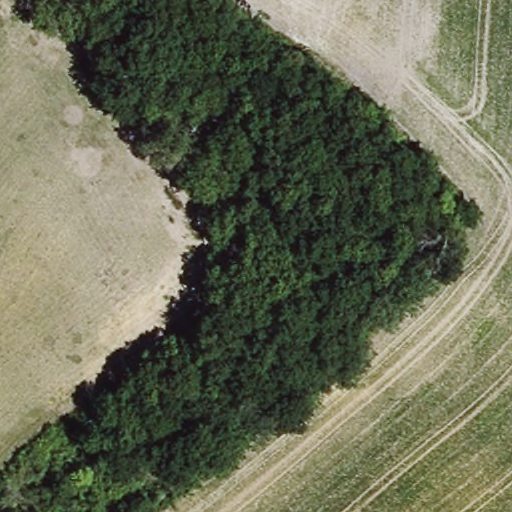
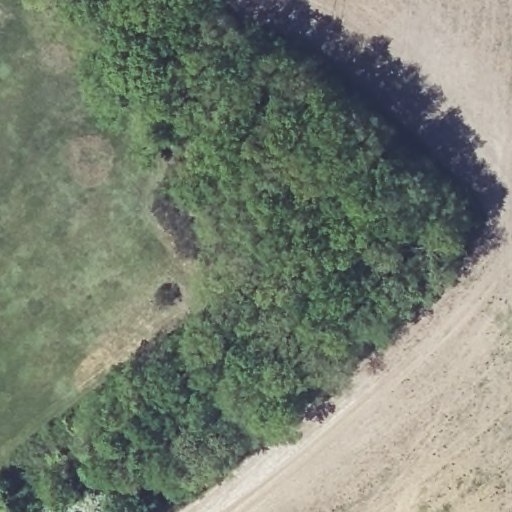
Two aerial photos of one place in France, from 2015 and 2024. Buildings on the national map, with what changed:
[]

